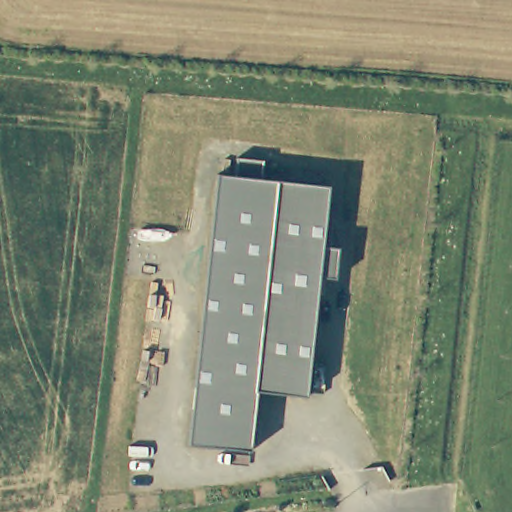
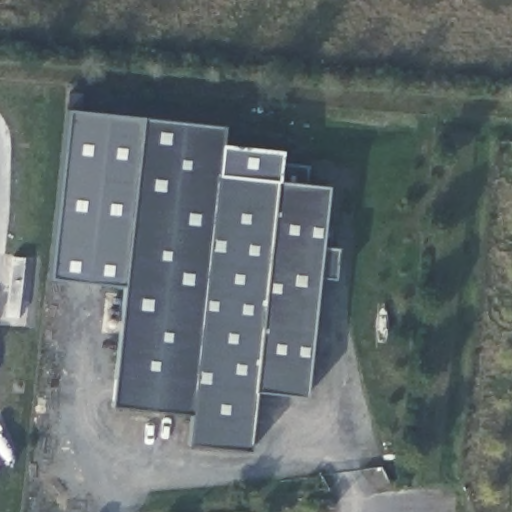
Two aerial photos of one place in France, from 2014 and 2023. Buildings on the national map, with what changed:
new [(124,285),(48,278),(67,109),(142,119),(124,285)]
new [(112,408),(142,119),(225,127),(219,175),(191,416),(112,408)]
unchanged [(322,249),(338,248),(335,278),(319,279),(306,397),(256,392),(249,449),(188,445),(219,175),(237,176),(235,159),(263,162),(261,180),(328,186),(322,249)]

